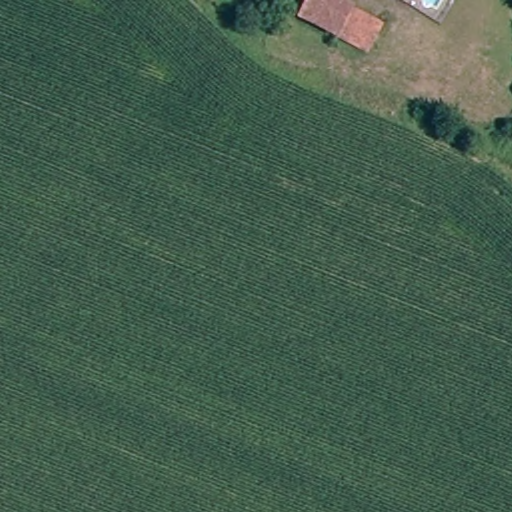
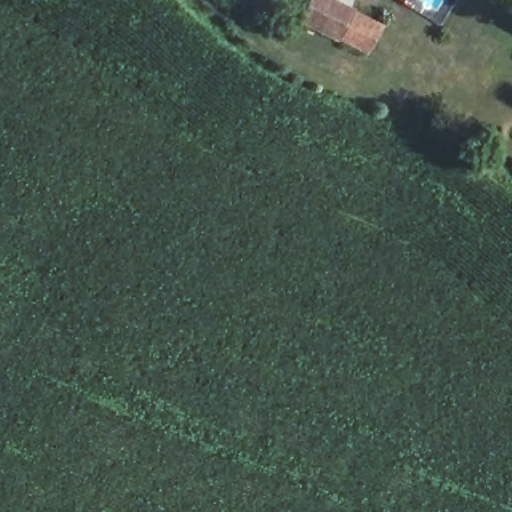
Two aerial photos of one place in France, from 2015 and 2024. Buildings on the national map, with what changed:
unchanged [(331,0),(349,9),(337,34),(300,15),(308,0),(331,0)]
unchanged [(349,9),(384,25),(370,51),(337,34),(349,9)]

